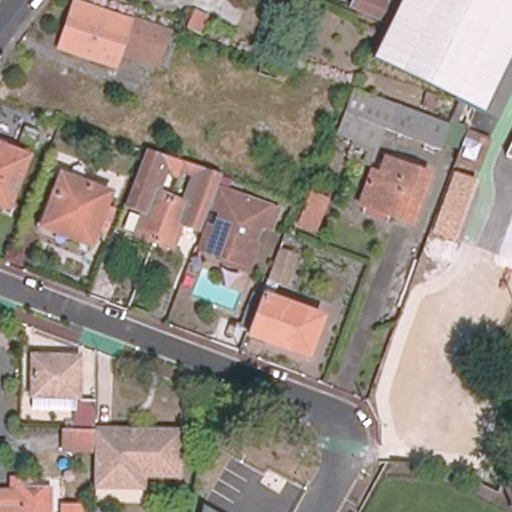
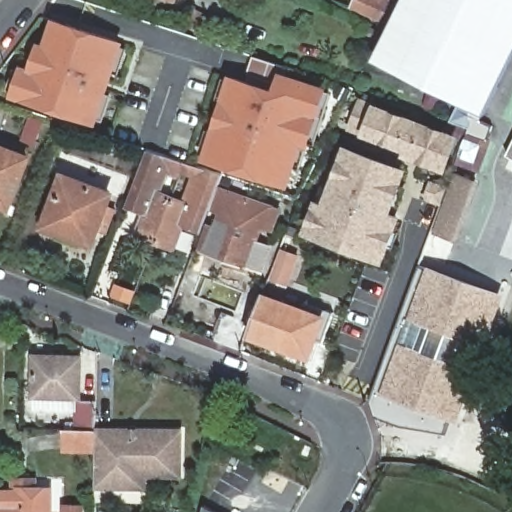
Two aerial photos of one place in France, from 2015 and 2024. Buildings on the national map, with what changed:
unchanged [(367,0),(384,0),(388,2),(389,0),(409,0),(405,10),(395,31),(360,16),(367,0)]
unchanged [(487,114),(470,105),(380,61),(395,31),(405,10),(409,0),(512,0),(512,63),(487,114)]
demolished [(77,2),(178,37),(171,53),(164,50),(157,67),(121,55),(115,67),(61,50),(77,2)]
new [(52,16),(125,40),(97,124),(11,96),(21,64),(29,67),(37,40),(44,42),(52,16)]
unchanged [(375,39),(378,32),(390,37),(385,44),(375,39)]
unchanged [(205,52),(210,55),(206,62),(201,58),(205,52)]
new [(247,78),(254,56),(285,65),(283,71),(328,86),(310,147),(302,145),(290,186),(201,159),(229,72),(247,78)]
demolished [(261,62),(287,71),(283,83),(257,75),(261,62)]
demolished [(341,132),(360,88),(450,124),(441,147),(385,126),(376,145),(341,132)]
new [(360,96),(373,102),(459,134),(445,170),(401,154),(403,151),(360,134),(348,128),(360,96)]
unchanged [(458,154),(471,124),(487,130),(475,162),(458,154)]
new [(392,212),(401,215),(384,262),(303,232),(315,199),(322,201),(345,144),(408,167),(392,212)]
unchanged [(507,157),(512,147),(512,160),(507,157)]
unchanged [(0,149),(26,160),(7,207),(0,205),(0,149)]
unchanged [(185,163),(181,174),(170,170),(170,166),(163,164),(151,196),(170,203),(155,242),(136,235),(145,213),(126,206),(147,151),(185,163)]
demolished [(360,206),(370,180),(377,183),(386,159),(430,176),(411,224),(360,206)]
unchanged [(217,190),(215,196),(210,209),(201,233),(181,226),(173,248),(155,242),(170,203),(188,210),(200,178),(194,176),(193,178),(181,174),(185,163),(222,175),(217,190)]
unchanged [(478,181),(456,241),(437,234),(457,174),(478,181)]
unchanged [(45,227),(64,179),(108,196),(90,244),(45,227)]
demolished [(298,226),(311,196),(313,197),(316,189),(329,194),(325,202),(327,203),(315,232),(298,226)]
unchanged [(225,193),(277,213),(270,232),(260,228),(245,271),(225,263),(227,258),(204,250),(211,230),(216,232),(224,214),(210,209),(215,196),(217,190),(225,193)]
unchanged [(290,230),(295,232),(292,239),(287,237),(290,230)]
unchanged [(275,280),(286,252),(301,257),(290,285),(275,280)]
new [(427,265),(505,292),(457,422),(452,421),(446,434),(394,423),(372,415),(369,401),(418,266),(425,270),(427,265)]
unchanged [(241,325),(255,330),(266,297),(326,318),(312,357),(254,336),(247,353),(245,352),(234,348),(241,325)]
unchanged [(35,410),(35,398),(36,358),(80,360),(80,399),(76,398),(76,410),(35,410)]
unchanged [(180,477),(145,477),(144,489),(95,488),(95,482),(95,452),(69,452),(69,432),(69,427),(78,427),(78,406),(84,402),(96,402),(96,432),(115,432),(137,433),(180,433),(180,477)]
unchanged [(0,433),(2,433),(1,443),(0,443),(0,433)]
unchanged [(32,476),(33,486),(52,486),(52,512),(40,512),(40,508),(12,507),(14,491),(10,491),(8,477),(32,476)]
unchanged [(14,491),(12,507),(40,508),(40,512),(0,512),(0,490),(10,491),(14,491)]
unchanged [(82,512),(59,512),(59,503),(82,503),(82,512)]
unchanged [(203,505),(216,512),(202,512),(203,505)]

